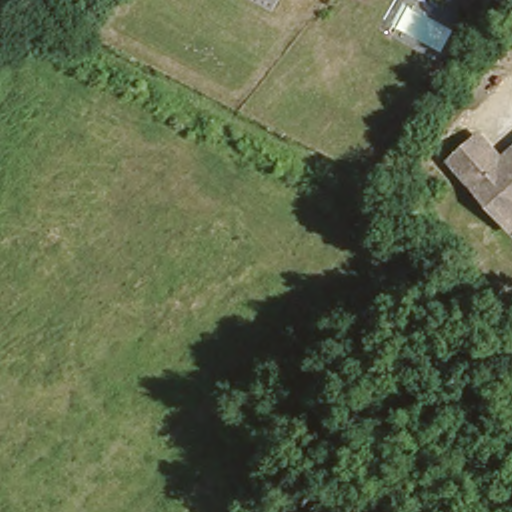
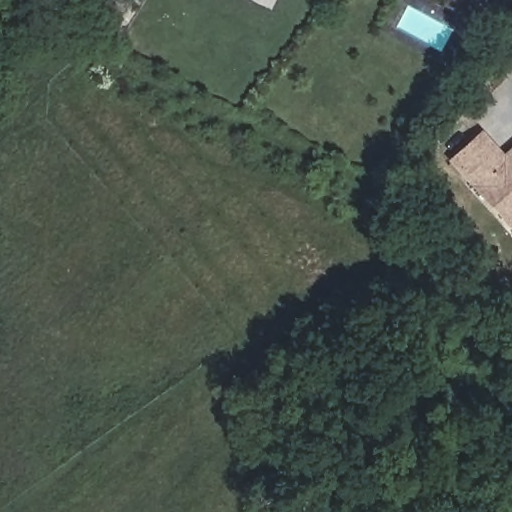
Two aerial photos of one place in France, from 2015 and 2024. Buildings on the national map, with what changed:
unchanged [(507,226),(502,219),(445,156),(470,133),(476,127),(497,151),(512,139),(512,222),(507,226)]

